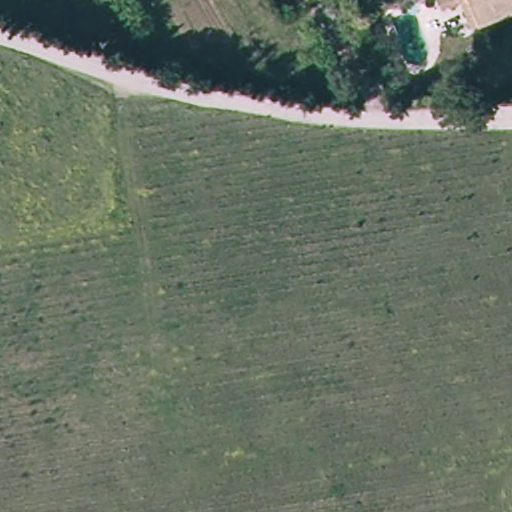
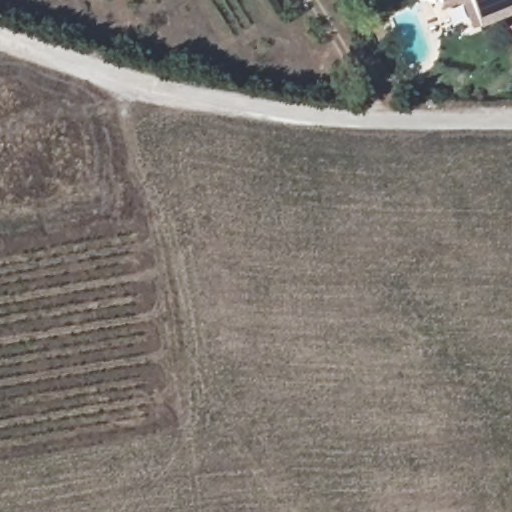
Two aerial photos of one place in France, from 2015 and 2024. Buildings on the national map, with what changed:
unchanged [(438,1),(438,0),(441,0),(438,1)]
unchanged [(479,29),(467,0),(512,0),(512,17),(479,29)]

